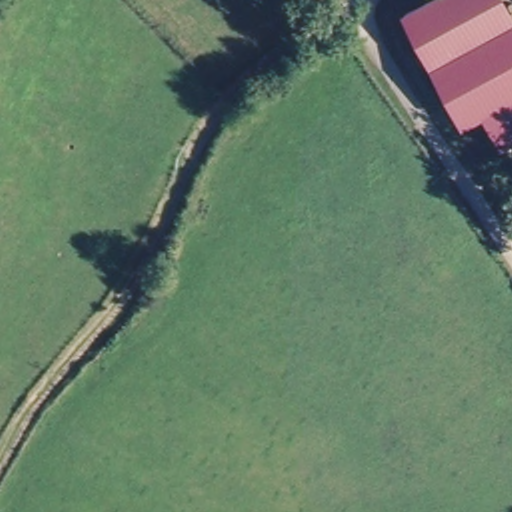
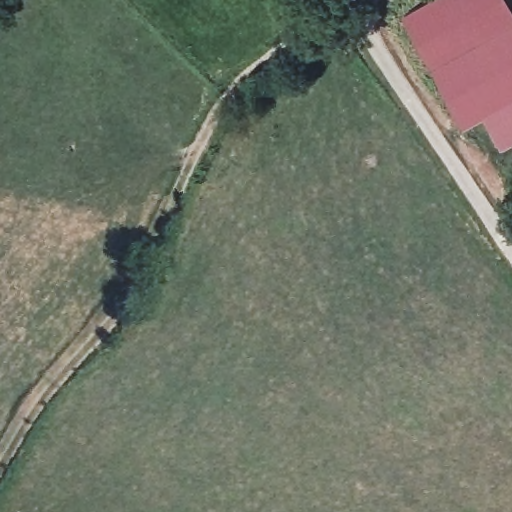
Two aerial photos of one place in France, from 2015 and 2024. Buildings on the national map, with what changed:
unchanged [(430,65),(403,12),(426,0),(502,0),(512,20),(512,22),(452,53),(430,65)]
unchanged [(483,112),(452,53),(512,22),(512,97),(483,112)]
unchanged [(501,149),(483,112),(512,97),(512,144),(501,149)]

